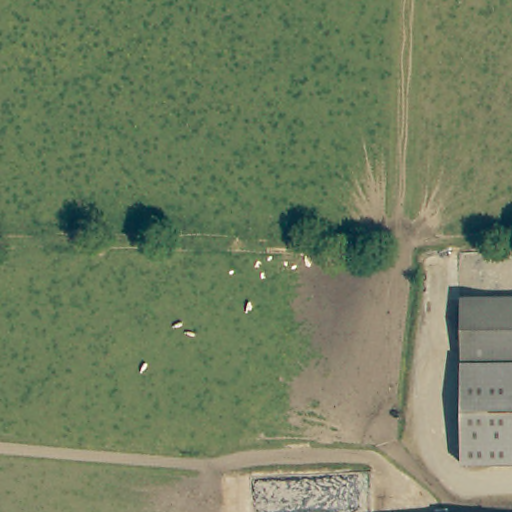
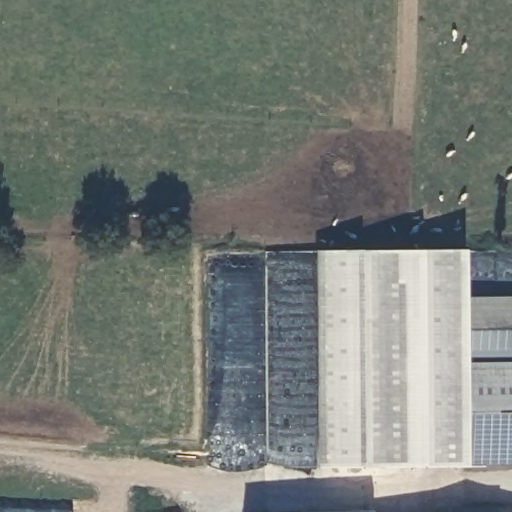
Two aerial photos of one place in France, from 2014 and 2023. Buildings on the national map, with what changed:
new [(462,466),(315,468),(313,250),(460,250),(462,299),(463,463),(462,466)]
unchanged [(512,463),(463,463),(462,299),(512,298),(512,463)]

